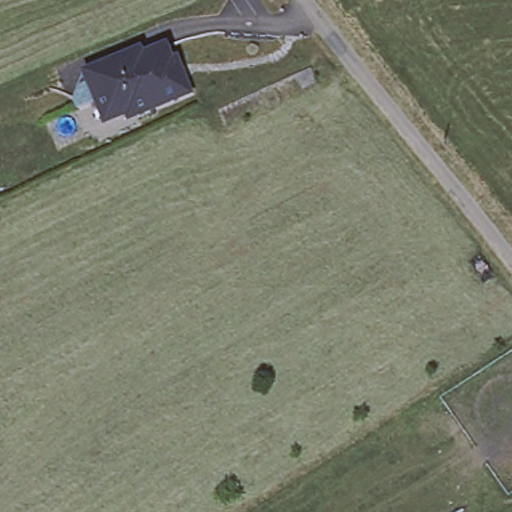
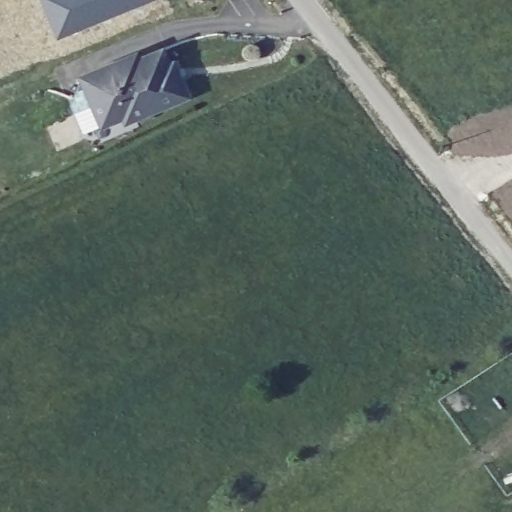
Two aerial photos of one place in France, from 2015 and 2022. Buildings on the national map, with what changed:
new [(56,42),(40,0),(154,0),(155,1),(56,42)]
unchanged [(147,53),(150,57),(173,49),(185,76),(189,75),(197,95),(135,120),(134,115),(92,131),(80,102),(91,75),(147,53)]

